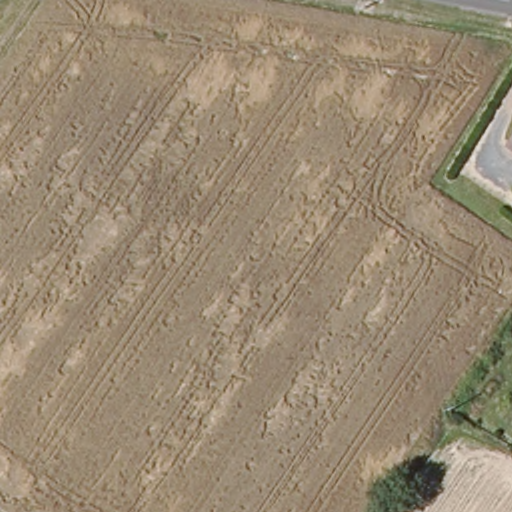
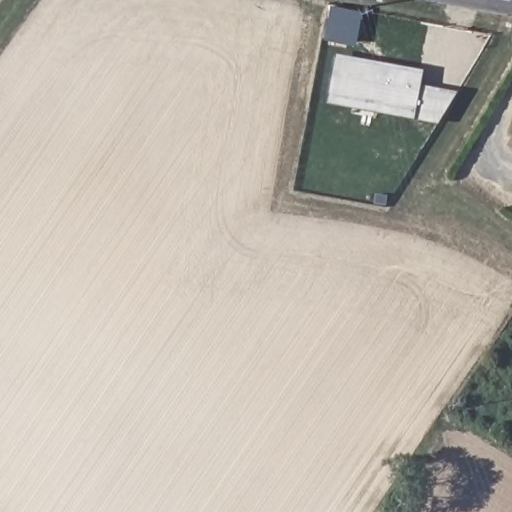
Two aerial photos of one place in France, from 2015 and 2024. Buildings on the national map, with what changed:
new [(356,44),(325,38),(333,4),(362,10),(356,44)]
new [(438,125),(414,121),(327,103),(336,53),(422,70),(420,86),(457,91),(438,125)]

